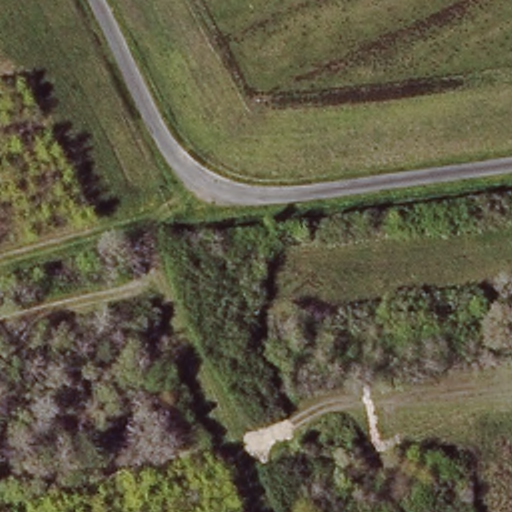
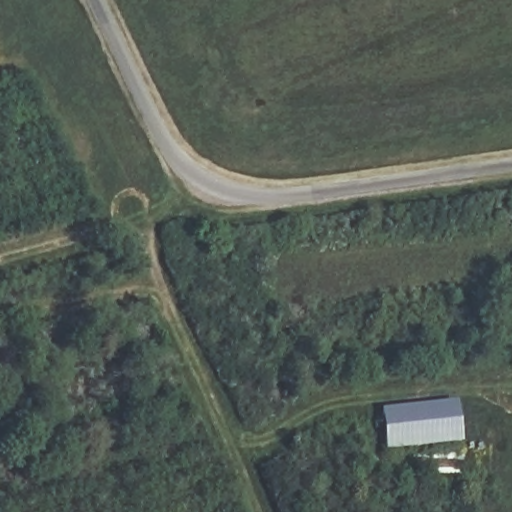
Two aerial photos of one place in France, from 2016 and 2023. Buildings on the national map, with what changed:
new [(462,443),(385,452),(380,409),(457,401),(462,443)]

